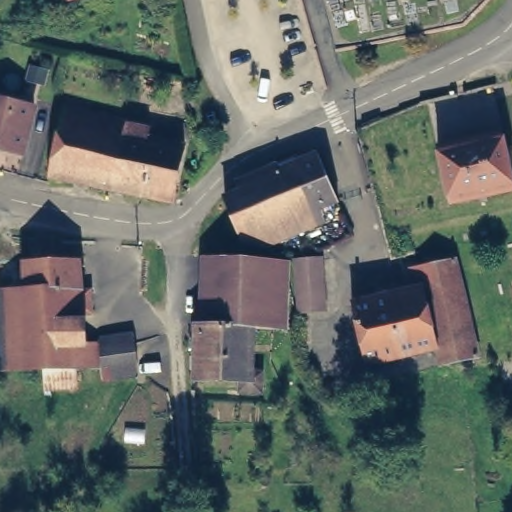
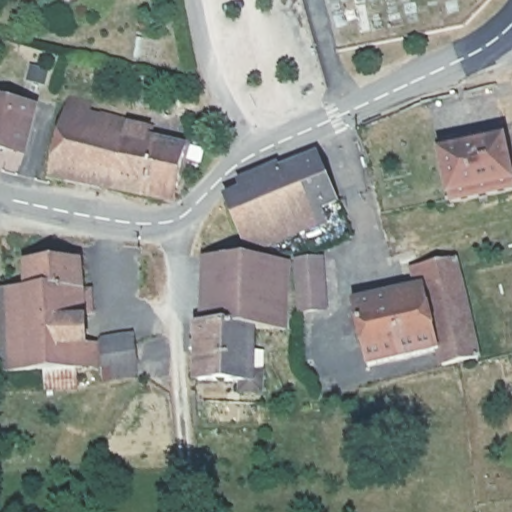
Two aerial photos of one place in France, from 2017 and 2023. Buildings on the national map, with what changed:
unchanged [(27,101),(28,101),(28,102),(27,142),(27,144),(26,143),(0,138),(0,96),(27,101)]
unchanged [(116,188),(50,176),(48,176),(49,174),(51,116),(51,115),(53,115),(149,125),(150,125),(150,126),(150,135),(149,136),(150,136),(181,141),(183,141),(183,142),(175,181),(175,182),(175,183),(173,196),(172,198),(171,197),(117,188),(116,188)]
unchanged [(502,132),(503,132),(504,133),(512,181),(512,188),(443,201),(441,201),(441,200),(431,146),(430,145),(432,144),(502,132)]
unchanged [(310,245),(282,252),(281,252),(255,246),(254,246),(227,202),(227,201),(241,192),(242,192),(241,191),(240,186),(240,185),(296,157),(297,157),(298,158),(330,207),(331,208),(330,209),(319,215),(318,216),(320,217),(326,226),(327,227),(326,228),(311,244),(311,245),(310,245)]
unchanged [(34,254),(35,254),(87,255),(88,255),(88,256),(88,282),(88,283),(90,283),(92,283),(93,283),(93,284),(94,308),(94,309),(93,309),(87,309),(86,309),(86,311),(87,336),(87,338),(88,338),(102,339),(103,339),(103,340),(103,344),(103,346),(105,346),(139,346),(139,347),(139,362),(139,364),(137,364),(101,367),(100,367),(10,364),(8,364),(8,363),(10,284),(10,283),(33,283),(33,282),(34,255),(34,254)]
unchanged [(207,255),(282,262),(283,262),(283,263),(277,331),(277,332),(276,332),(254,330),(253,330),(252,331),(248,370),(248,371),(250,371),(261,373),(262,373),(262,374),(261,384),(261,385),(260,385),(195,379),(194,379),(194,378),(196,323),(196,321),(197,321),(200,322),(202,322),(202,320),(205,256),(206,255),(207,255)]
unchanged [(435,346),(422,285),(421,284),(418,264),(455,256),(471,340),(475,354),(455,359),(438,363),(436,355),(435,347),(435,346)]
unchanged [(350,301),(350,300),(351,300),(420,284),(421,284),(422,285),(435,346),(435,347),(433,348),(364,363),(362,364),(362,362),(357,338),(346,340),(343,323),(353,320),(350,301)]
unchanged [(310,287),(315,311),(306,313),(301,288),(310,287)]

